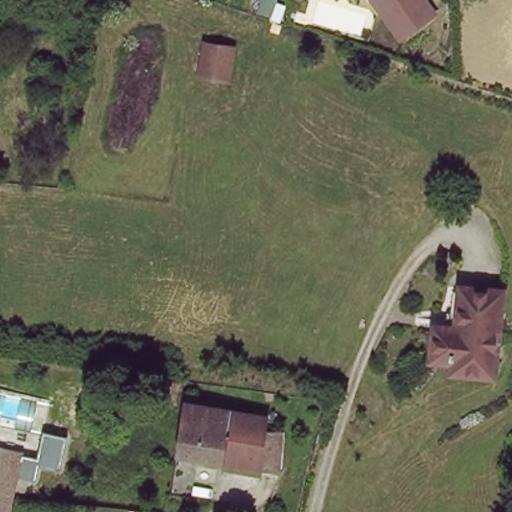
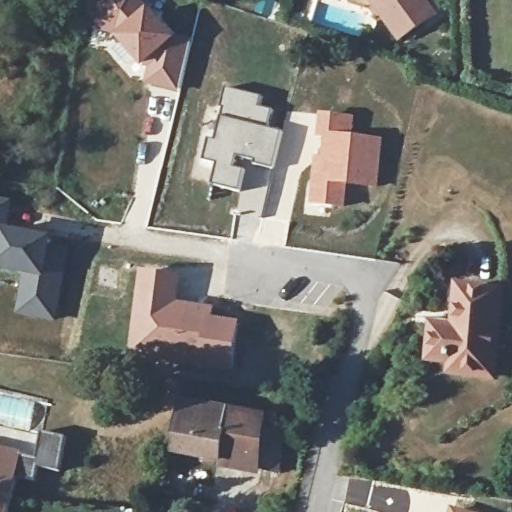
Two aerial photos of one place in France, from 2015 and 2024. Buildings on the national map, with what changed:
new [(145,65),(118,32),(98,27),(105,0),(137,0),(171,39),(190,44),(180,89),(149,80),(154,66),(145,65)]
unchanged [(403,33),(379,0),(428,0),(435,9),(403,33)]
demolished [(235,44),(228,75),(213,72),(219,40),(235,44)]
new [(261,97),(259,107),(273,111),(268,129),(281,131),(272,169),(255,164),(256,161),(237,156),(234,168),(244,170),(240,190),(213,184),(218,164),(205,160),(211,139),(216,141),(222,117),(225,109),(222,108),(227,89),(261,97)]
new [(356,117),(355,136),(384,140),(379,190),(349,185),(347,209),(312,205),(317,157),(322,157),(325,139),(318,139),(320,113),(356,117)]
new [(29,273),(0,268),(0,260),(1,257),(0,257),(0,202),(9,204),(4,231),(51,240),(50,249),(67,252),(55,320),(20,312),(29,273)]
new [(141,270),(183,273),(180,301),(216,306),(215,317),(241,320),(233,371),(170,364),(127,357),(141,270)]
unchanged [(457,365),(432,362),(436,335),(447,336),(450,318),(460,320),(465,286),(505,292),(491,380),(477,377),(455,374),(457,365)]
unchanged [(262,468),(176,454),(186,401),(272,418),(262,468)]
new [(66,437),(60,470),(39,465),(35,482),(17,477),(19,456),(37,459),(43,432),(66,437)]
unchanged [(20,450),(14,495),(11,512),(0,512),(0,447),(20,450)]
new [(451,506),(473,512),(449,512),(451,506)]

